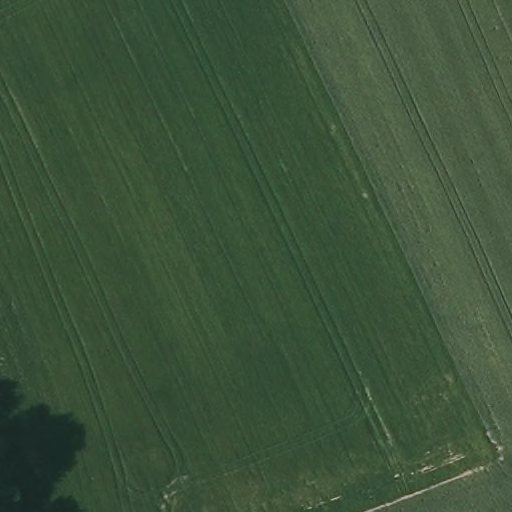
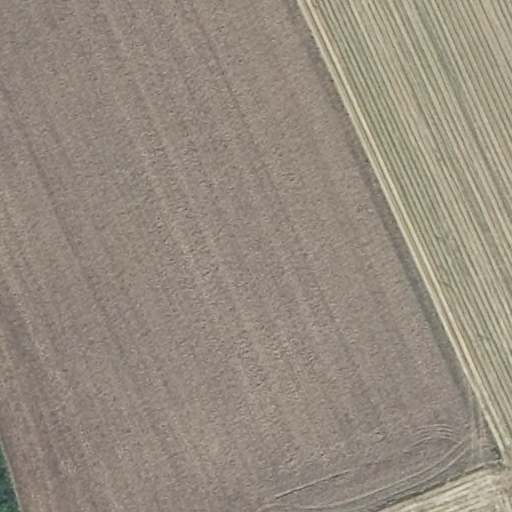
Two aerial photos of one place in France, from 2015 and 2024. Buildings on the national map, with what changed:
[]

